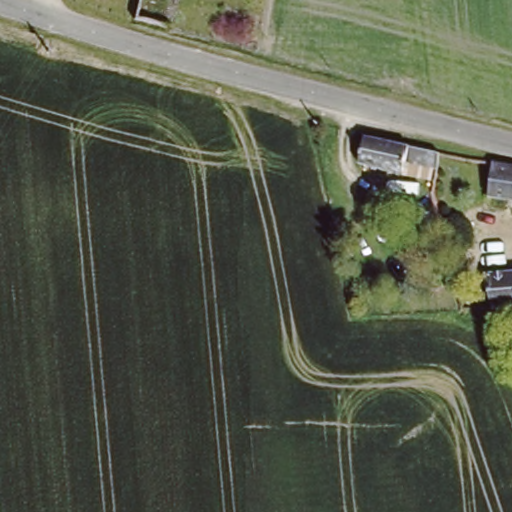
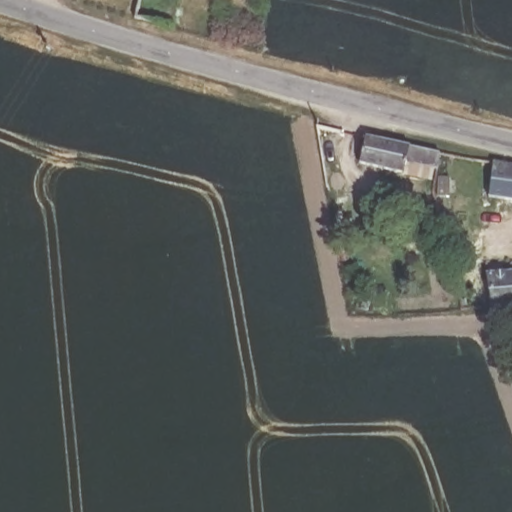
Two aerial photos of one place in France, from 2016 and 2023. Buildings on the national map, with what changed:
unchanged [(442,146),(438,163),(406,154),(403,168),(368,158),(360,156),(366,131),(442,146)]
unchanged [(512,198),(487,194),(493,160),(512,164),(512,198)]
unchanged [(512,267),(512,302),(490,304),(488,269),(512,267)]

